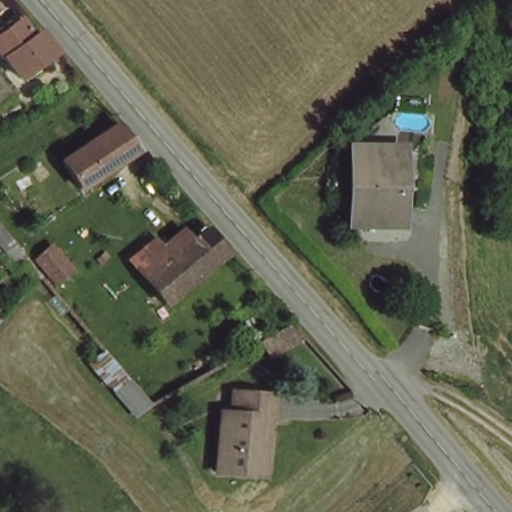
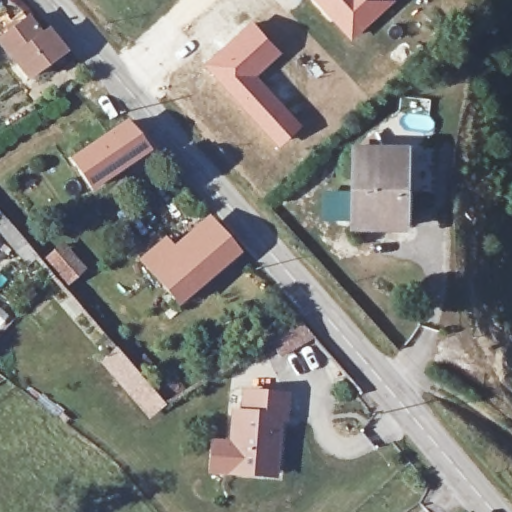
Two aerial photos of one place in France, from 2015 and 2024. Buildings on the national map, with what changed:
new [(352,42),(314,0),(397,0),(352,42)]
unchanged [(64,57),(32,83),(0,44),(0,31),(26,9),(64,57)]
new [(253,19),(283,52),(259,75),(304,124),(279,146),(204,64),(253,19)]
unchanged [(147,146),(87,185),(69,159),(127,119),(147,146)]
unchanged [(405,139),(405,179),(417,180),(415,221),(352,218),(356,137),(405,139)]
new [(62,242),(86,270),(67,287),(36,260),(28,267),(0,234),(0,214),(43,259),(62,242)]
unchanged [(244,250),(174,300),(152,272),(137,253),(162,234),(177,254),(222,221),(244,250)]
unchanged [(290,339),(292,340),(300,350),(266,365),(260,349),(257,345),(264,342),(271,340),(273,339),(289,337),(290,339)]
new [(164,406),(147,419),(112,375),(110,377),(110,371),(107,372),(101,364),(120,349),(164,406)]
unchanged [(262,468),(230,464),(240,407),(250,409),(254,385),(292,390),(289,413),(282,412),(277,442),(272,469),(262,468)]

